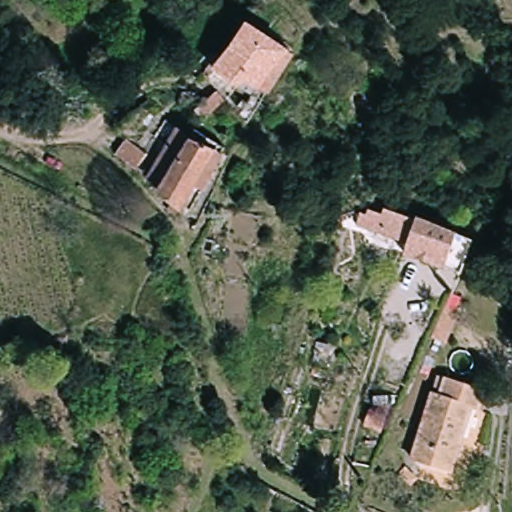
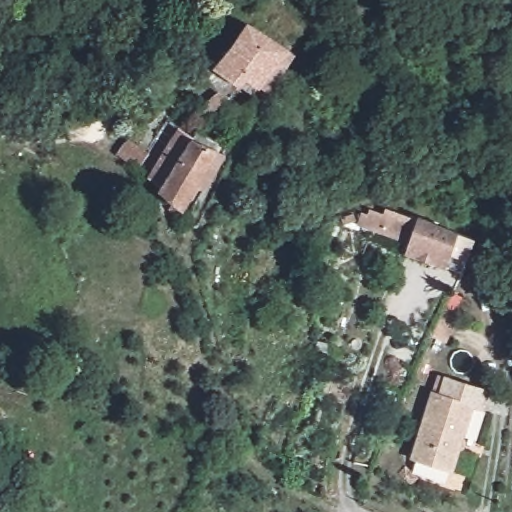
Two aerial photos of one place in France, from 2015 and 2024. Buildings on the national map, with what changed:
unchanged [(273,94),(270,91),(228,74),(245,25),(290,42),(273,94)]
unchanged [(200,192),(195,188),(184,210),(157,189),(146,170),(174,124),(223,151),(200,192)]
unchanged [(145,151),(133,167),(113,154),(125,137),(145,151)]
unchanged [(412,241),(354,225),(358,212),(369,215),(370,205),(416,220),(416,217),(477,231),(463,265),(446,260),(409,252),(412,241)]
unchanged [(485,388),(479,410),(471,408),(453,470),(412,457),(429,396),(437,398),(443,376),(485,388)]

